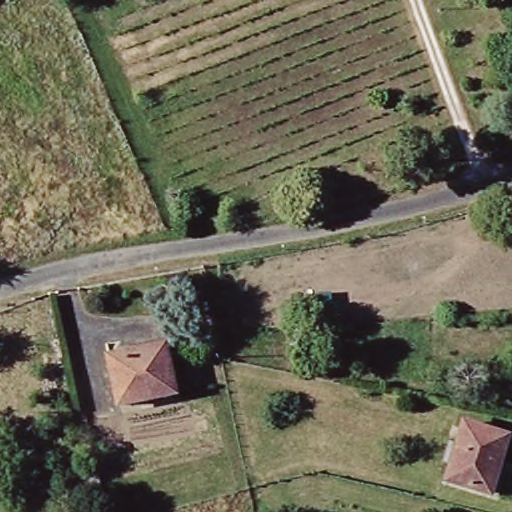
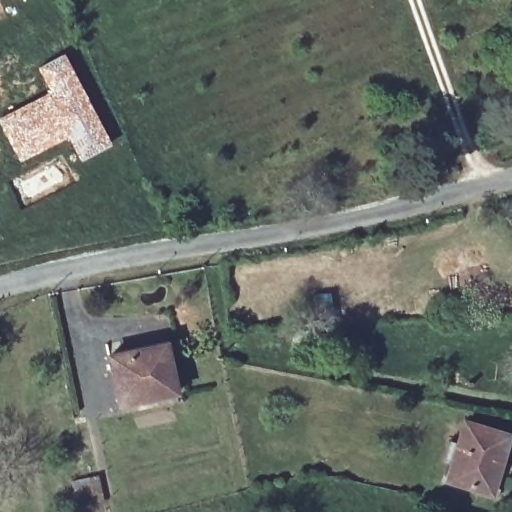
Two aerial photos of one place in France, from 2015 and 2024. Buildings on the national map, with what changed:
new [(35,67),(63,52),(113,145),(80,162),(66,140),(18,164),(0,129),(0,114),(46,91),(35,67)]
unchanged [(176,394),(118,406),(108,357),(131,352),(132,357),(166,350),(176,394)]
unchanged [(490,495),(447,481),(465,424),(508,437),(490,495)]

